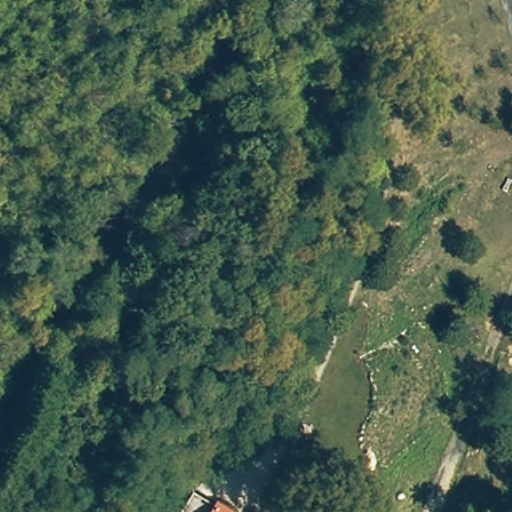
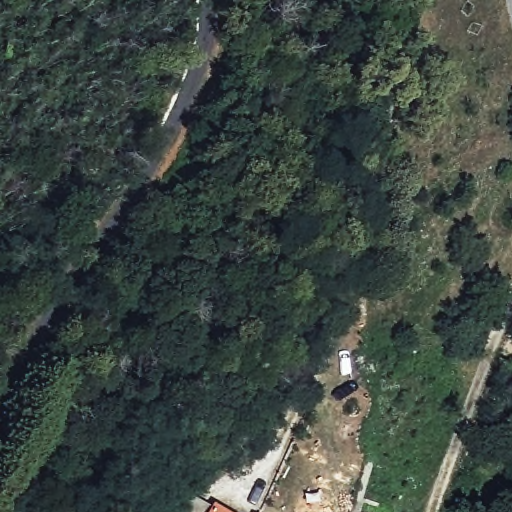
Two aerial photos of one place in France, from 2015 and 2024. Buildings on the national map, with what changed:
unchanged [(210,507),(207,512),(179,512),(191,492),(210,507)]
unchanged [(217,512),(207,512),(210,507),(217,512)]

